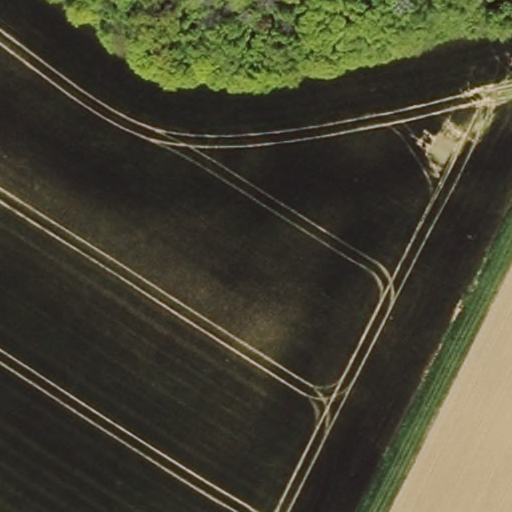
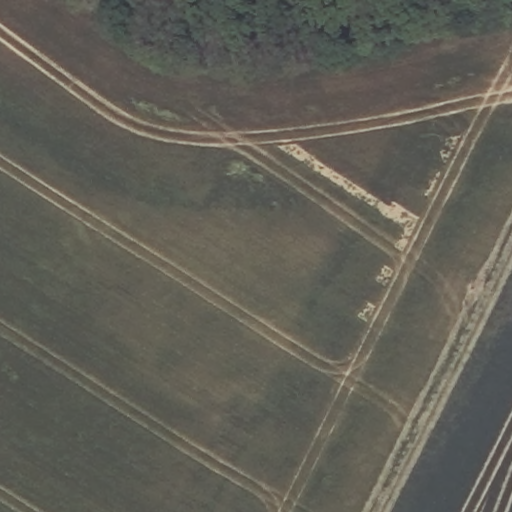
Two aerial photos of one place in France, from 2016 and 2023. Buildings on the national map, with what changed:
[]

